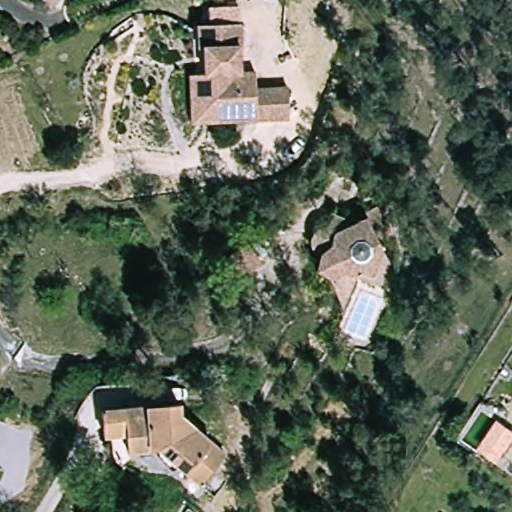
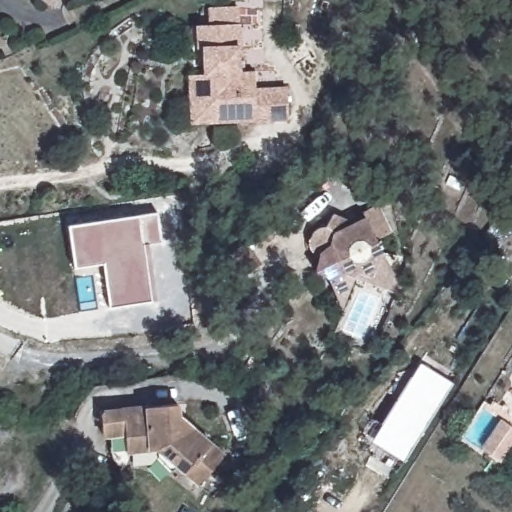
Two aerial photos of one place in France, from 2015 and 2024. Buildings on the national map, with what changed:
unchanged [(46,0),(60,0),(55,7),(46,0)]
unchanged [(188,74),(203,74),(202,48),(197,48),(196,25),(238,23),(239,47),(237,47),(238,72),(253,72),(253,89),(286,87),(287,118),(205,122),(190,122),(188,74)]
unchanged [(323,261),(318,258),(314,254),(314,249),(314,244),(316,240),(319,236),(323,234),(328,233),(337,219),(351,224),(366,217),(382,210),(396,239),(381,246),(386,256),(376,283),(361,278),(351,301),(341,301),(334,285),(319,277),(323,261)]
new [(139,215),(152,301),(108,308),(102,264),(73,269),(68,226),(139,215)]
new [(373,440),(420,364),(453,384),(406,462),(373,440)]
unchanged [(183,418),(228,456),(203,485),(160,449),(130,451),(128,432),(106,434),(104,409),(126,407),(182,404),(183,418)]

